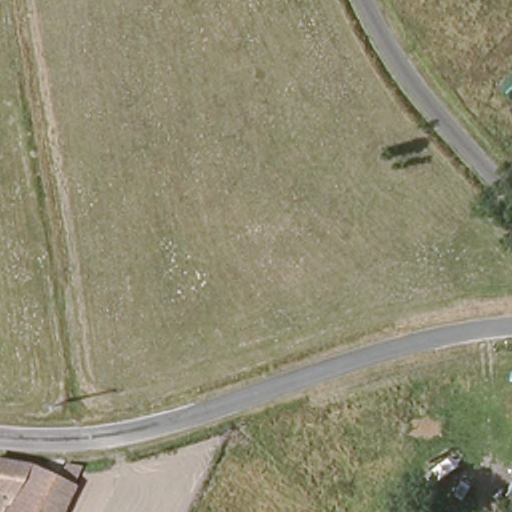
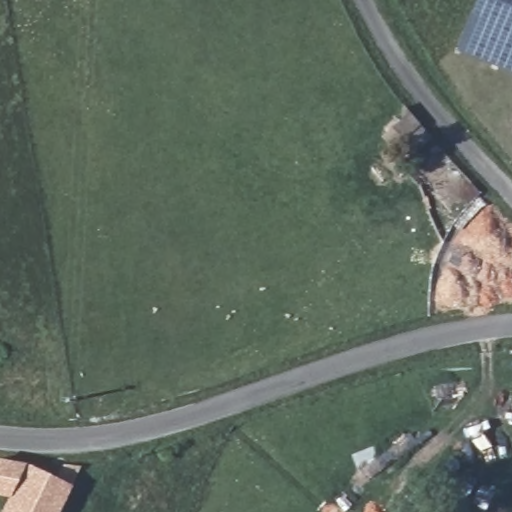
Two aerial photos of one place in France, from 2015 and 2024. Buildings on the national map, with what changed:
new [(475,0),(512,0),(512,73),(455,51),(475,0)]
unchanged [(0,499),(0,471),(21,474),(9,500),(0,499)]
unchanged [(9,512),(27,475),(56,488),(63,473),(78,474),(59,512),(9,512)]

